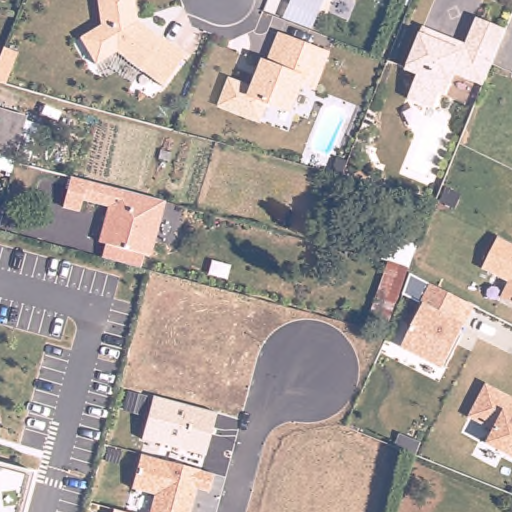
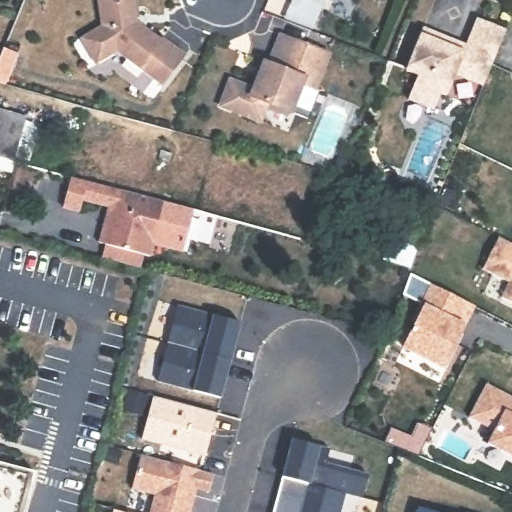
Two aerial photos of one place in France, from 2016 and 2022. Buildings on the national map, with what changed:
unchanged [(139,24),(136,27),(141,31),(144,28),(162,42),(164,40),(187,58),(163,89),(118,54),(97,67),(80,41),(101,28),(98,0),(135,0),(139,24)]
unchanged [(482,90),(454,79),(445,100),(439,98),(432,114),(407,103),(416,80),(405,75),(422,32),(448,42),(445,49),(462,56),(476,23),(505,35),(482,90)]
unchanged [(330,56),(315,93),(303,88),(292,116),(267,107),(260,125),(220,110),(230,84),(254,93),(265,65),(270,67),(281,37),(330,56)]
unchanged [(18,56),(7,89),(0,87),(0,59),(2,53),(18,56)]
unchanged [(27,120),(15,163),(0,159),(0,113),(27,120)]
unchanged [(70,176),(127,192),(120,218),(114,216),(105,245),(100,243),(109,208),(83,202),(80,212),(62,207),(70,176)]
unchanged [(105,245),(114,216),(120,218),(127,192),(170,204),(155,258),(150,257),(145,272),(120,265),(107,261),(111,246),(105,245)]
unchanged [(512,303),(500,298),(507,282),(482,268),(497,236),(512,243),(512,303)]
unchanged [(394,262),(402,242),(423,248),(416,268),(394,262)]
demolished [(390,268),(414,274),(401,307),(391,337),(367,329),(390,268)]
unchanged [(401,347),(422,303),(405,296),(414,274),(430,284),(475,305),(465,324),(445,369),(401,347)]
new [(220,398),(156,382),(178,305),(240,322),(220,398)]
unchanged [(512,456),(486,443),(492,430),(467,418),(486,383),(512,395),(512,456)]
unchanged [(140,439),(148,418),(123,411),(129,389),(217,413),(205,456),(140,439)]
new [(345,495),(340,512),(272,512),(295,438),(330,449),(327,461),(367,471),(361,498),(345,495)]
unchanged [(130,488),(140,454),(214,474),(209,492),(196,489),(190,512),(149,512),(152,494),(130,488)]
unchanged [(34,471),(23,512),(0,512),(0,459),(34,471)]
unchanged [(431,512),(415,512),(415,508),(431,512)]
unchanged [(125,512),(112,512),(112,509),(125,512)]

